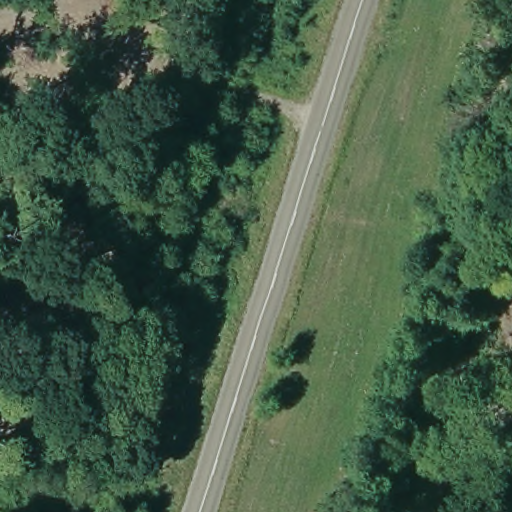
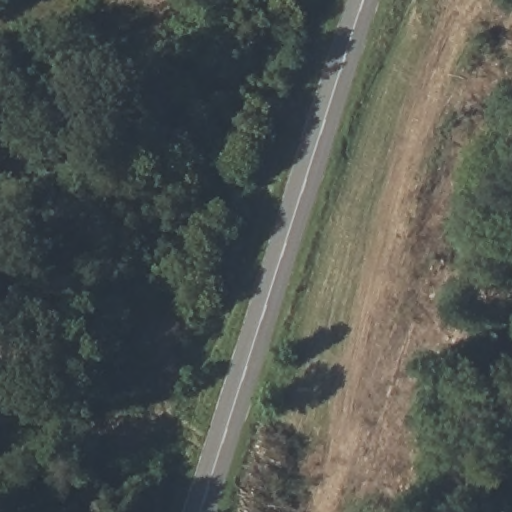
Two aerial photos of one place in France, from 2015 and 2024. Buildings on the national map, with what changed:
unchanged [(510,225),(495,272),(465,266),(481,222),(510,225)]

